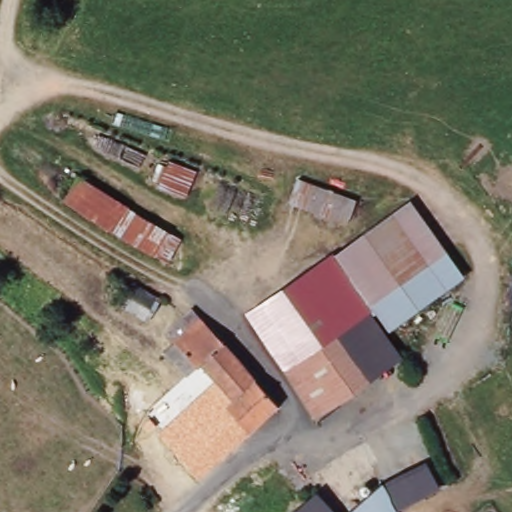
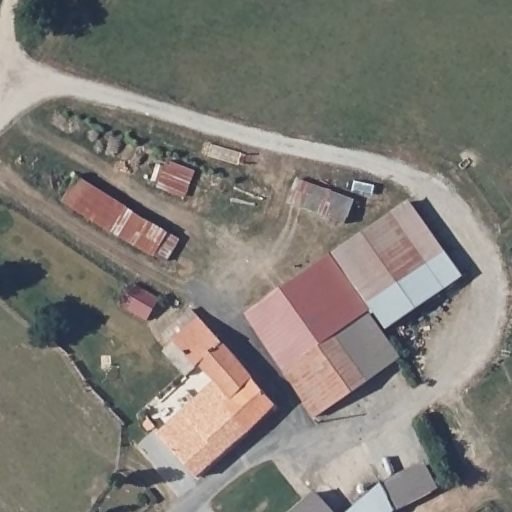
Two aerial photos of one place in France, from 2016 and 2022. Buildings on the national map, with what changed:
unchanged [(64,202),(80,177),(182,240),(167,265),(64,202)]
unchanged [(347,224),(290,203),(298,179),(356,200),(347,224)]
unchanged [(462,280),(387,333),(372,313),(334,259),(411,207),(462,280)]
unchanged [(334,259),(372,313),(367,315),(336,338),(286,374),(249,317),(334,259)]
unchanged [(145,318),(117,303),(129,282),(155,297),(156,298),(157,298),(145,318)]
unchanged [(235,358),(235,359),(277,407),(278,408),(281,411),(277,415),(276,413),(274,411),(272,414),(251,433),(249,434),(229,415),(224,410),(233,402),(229,397),(221,389),(217,384),(214,381),(202,368),(190,379),(167,355),(176,346),(167,336),(195,313),(234,357),(234,358),(235,358)]
unchanged [(336,338),(372,313),(387,333),(405,359),(368,385),(336,338)]
unchanged [(368,385),(317,420),(286,374),(336,338),(368,385)]
unchanged [(249,435),(247,435),(246,438),(201,477),(201,478),(199,479),(199,478),(179,457),(157,439),(217,384),(221,389),(229,397),(233,402),(224,410),(229,415),(249,434),(249,435)]
unchanged [(386,480),(425,461),(438,490),(399,508),(394,512),(350,512),(373,492),(386,480)]
unchanged [(334,512),(293,512),(315,492),(334,512)]

